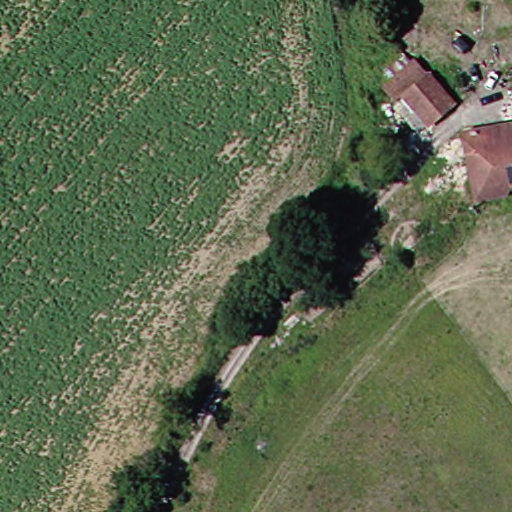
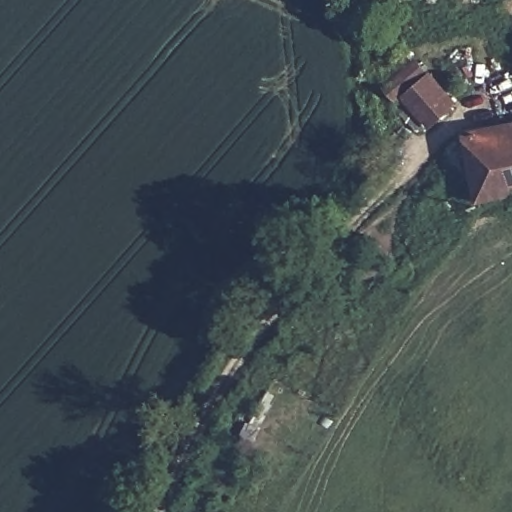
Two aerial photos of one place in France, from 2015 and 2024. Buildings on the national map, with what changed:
unchanged [(406,76),(410,73),(399,59),(419,44),(437,69),(414,86),(406,76)]
unchanged [(425,100),(418,91),(443,74),(467,103),(445,122),(440,116),(430,123),(417,105),(425,100)]
unchanged [(483,202),(477,130),(512,125),(512,198),(483,202)]

